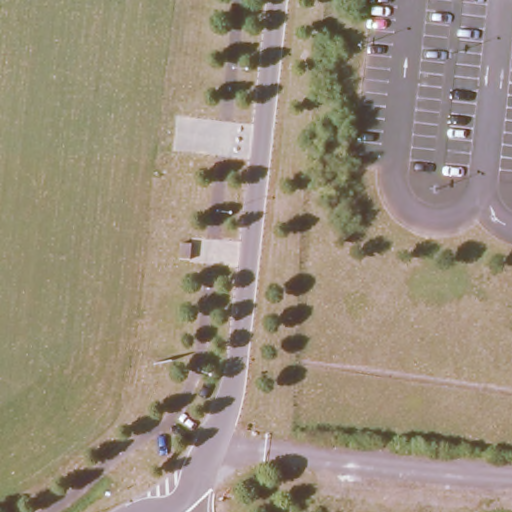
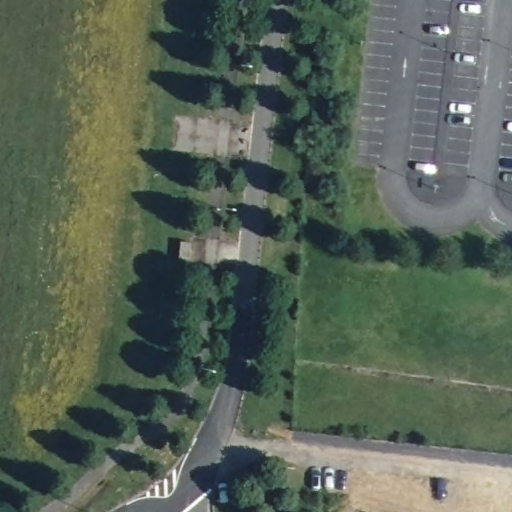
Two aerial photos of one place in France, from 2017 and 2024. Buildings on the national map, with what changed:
unchanged [(181,262),(182,249),(194,251),(193,264),(181,262)]

